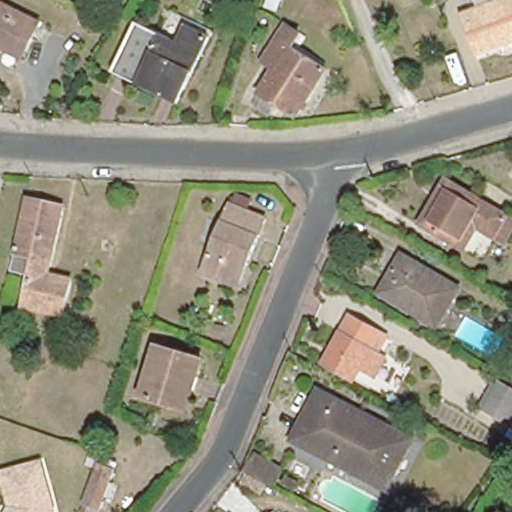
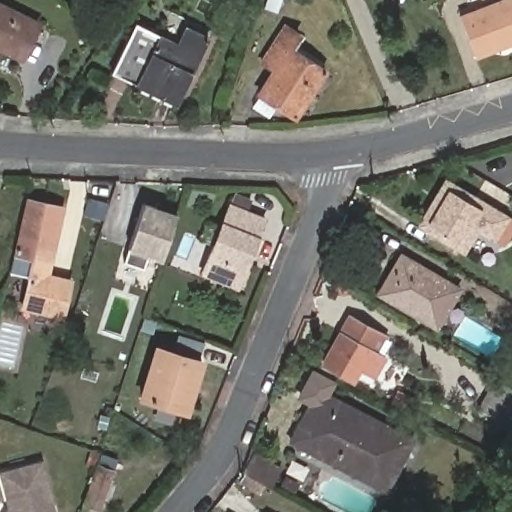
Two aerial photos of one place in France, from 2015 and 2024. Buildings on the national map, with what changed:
unchanged [(473,58),(455,14),(491,0),(512,0),(512,42),(473,58)]
unchanged [(0,52),(0,9),(39,28),(22,62),(0,52)]
unchanged [(178,106),(113,74),(138,24),(160,35),(161,32),(166,34),(182,43),(189,30),(211,41),(178,106)]
unchanged [(292,49),(324,70),(295,115),(262,94),(274,71),(263,63),(285,28),(298,36),(292,49)]
unchanged [(512,218),(512,236),(508,243),(482,227),(466,252),(429,229),(423,226),(438,201),(450,181),(512,218)]
unchanged [(55,206),(57,207),(41,278),(66,284),(58,316),(20,308),(26,275),(6,270),(21,199),(55,206)]
new [(177,211),(162,260),(147,256),(143,267),(124,261),(128,248),(144,201),(177,211)]
unchanged [(232,286),(202,272),(228,208),(266,223),(248,267),(239,289),(232,286)]
unchanged [(435,325),(378,292),(400,256),(457,288),(435,325)]
unchanged [(382,377),(360,365),(354,376),(324,358),(351,311),(380,328),(395,336),(386,352),(393,356),(382,377)]
unchanged [(160,342),(205,358),(188,408),(143,393),(160,342)]
unchanged [(512,387),(512,427),(480,407),(497,378),(512,387)]
unchanged [(385,486),(293,439),(318,391),(410,438),(385,486)]
unchanged [(255,454),(282,468),(272,488),(245,473),(255,454)]
unchanged [(99,511),(82,505),(97,464),(113,471),(99,511)]
unchanged [(1,478),(40,468),(51,512),(11,512),(11,510),(1,478)]

